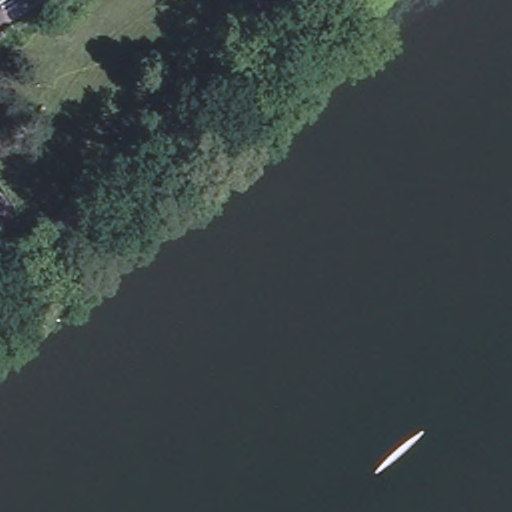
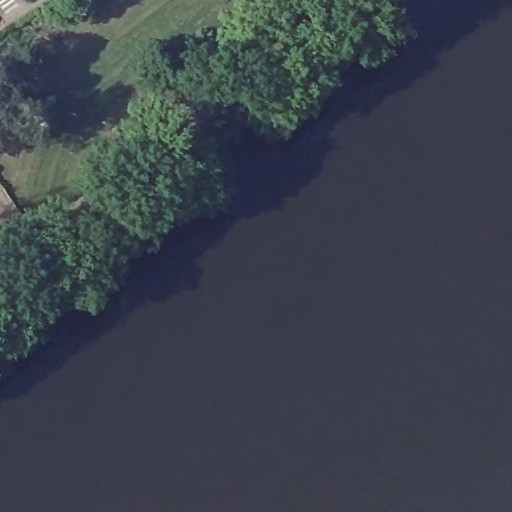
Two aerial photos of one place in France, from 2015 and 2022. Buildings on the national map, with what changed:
[]

